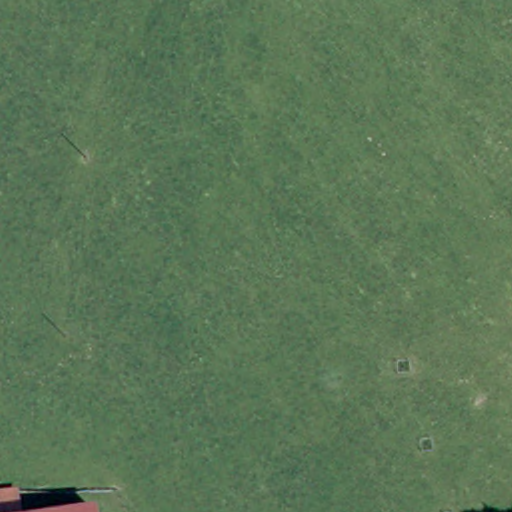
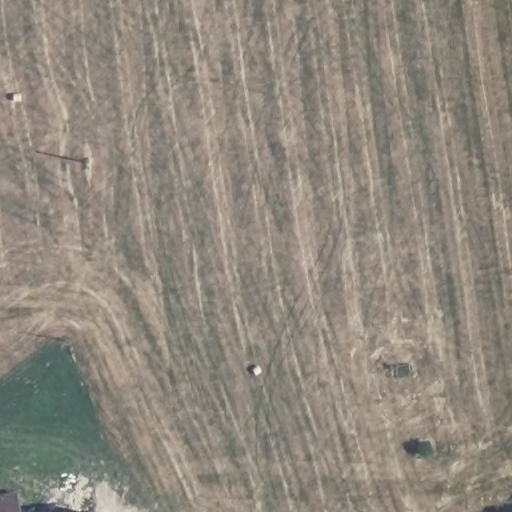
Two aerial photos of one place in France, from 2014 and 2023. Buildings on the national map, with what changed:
unchanged [(20,493),(23,512),(0,512),(0,497),(20,493)]

